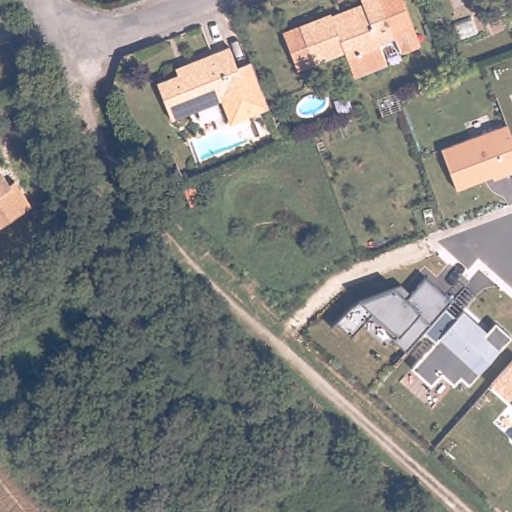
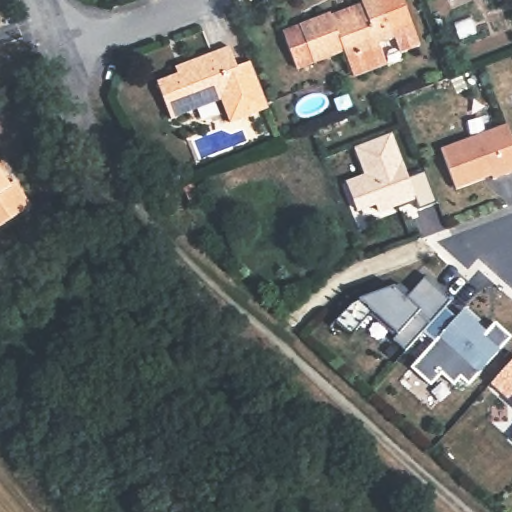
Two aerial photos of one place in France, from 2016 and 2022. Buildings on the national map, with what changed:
unchanged [(401,49),(395,33),(380,39),(387,59),(353,72),(343,46),(295,63),(282,30),(330,11),(333,19),(364,7),(362,0),(402,0),(419,42),(401,49)]
unchanged [(193,61),(231,46),(239,66),(254,60),(262,82),(272,107),(233,123),(224,100),(174,120),(160,82),(196,68),(193,61)]
unchanged [(512,173),(493,180),(491,176),(454,188),(441,149),(508,123),(512,135),(512,173)]
new [(369,172),(359,145),(395,131),(411,175),(428,168),(440,200),(422,207),(417,195),(382,209),(379,201),(361,207),(350,179),(369,172)]
unchanged [(20,185),(26,182),(39,198),(0,226),(0,160),(20,185)]
unchanged [(192,181),(198,197),(189,201),(182,184),(192,181)]
unchanged [(412,292),(425,277),(451,301),(445,309),(455,317),(463,309),(488,330),(496,323),(511,336),(468,384),(460,377),(453,384),(443,374),(430,387),(409,368),(434,340),(425,331),(405,351),(367,318),(349,336),(334,323),(358,300),(396,289),(412,292)]
unchanged [(499,369),(512,355),(512,403),(511,402),(488,381),(499,369)]

